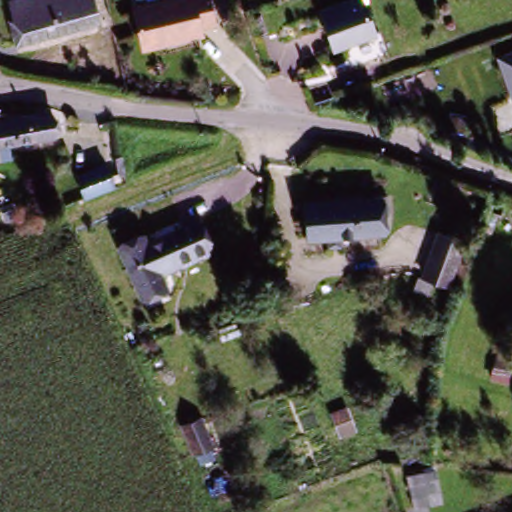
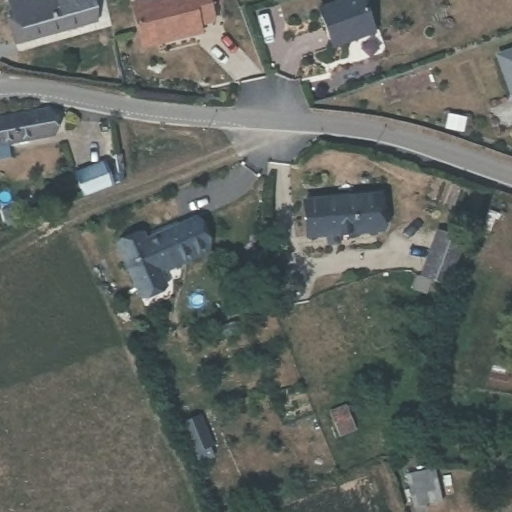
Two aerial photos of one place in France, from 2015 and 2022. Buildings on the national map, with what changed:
unchanged [(83,2),(11,24),(6,9),(5,6),(23,0),(83,0),(83,2)]
unchanged [(138,7),(160,0),(215,0),(220,17),(204,22),(207,29),(149,47),(138,7)]
unchanged [(373,33),(333,47),(320,8),(343,0),(363,0),(373,33)]
unchanged [(8,25),(11,24),(83,2),(86,2),(93,25),(15,47),(8,25)]
unchanged [(496,59),(512,53),(512,101),(511,101),(496,59)]
unchanged [(50,112),(50,137),(2,137),(1,153),(0,153),(0,113),(50,112)]
unchanged [(112,193),(85,204),(76,182),(103,171),(112,193)]
unchanged [(303,247),(298,202),(377,194),(377,196),(388,195),(391,217),(380,219),(383,238),(303,247)]
unchanged [(165,288),(139,299),(120,250),(145,240),(146,245),(196,222),(208,251),(176,266),(179,271),(161,279),(165,288)]
unchanged [(424,279),(439,237),(464,245),(449,287),(424,279)]

